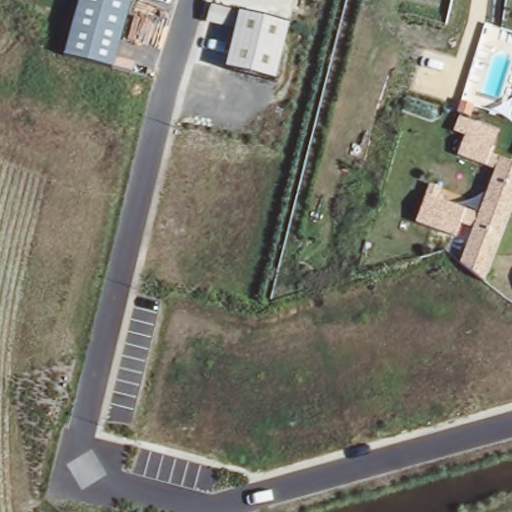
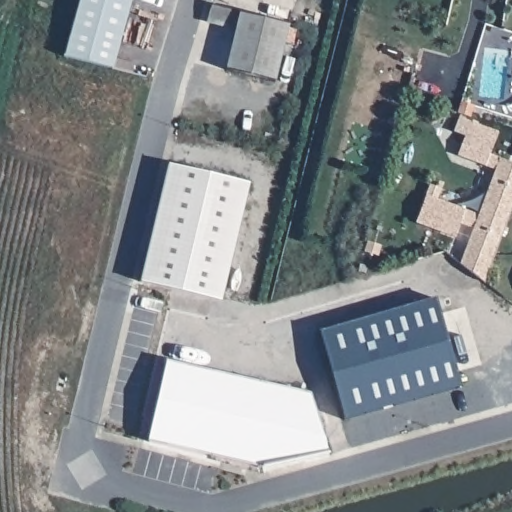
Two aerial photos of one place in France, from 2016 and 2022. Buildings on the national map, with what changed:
unchanged [(136,63),(132,73),(65,56),(80,0),(133,0),(117,58),(136,63)]
unchanged [(276,80),(227,66),(237,29),(208,21),(213,5),(290,25),(276,80)]
unchanged [(456,103),(453,113),(441,109),(444,99),(456,103)]
unchanged [(462,226),(456,240),(416,227),(426,197),(479,215),(495,171),(457,158),(465,136),(495,146),(491,155),(512,162),(512,215),(487,286),(461,266),(473,229),(462,226)]
new [(251,182),(223,300),(140,280),(170,164),(251,182)]
new [(438,297),(464,387),(345,420),(320,331),(438,297)]
new [(168,362),(311,395),(329,455),(263,473),(255,471),(149,443),(168,362)]

